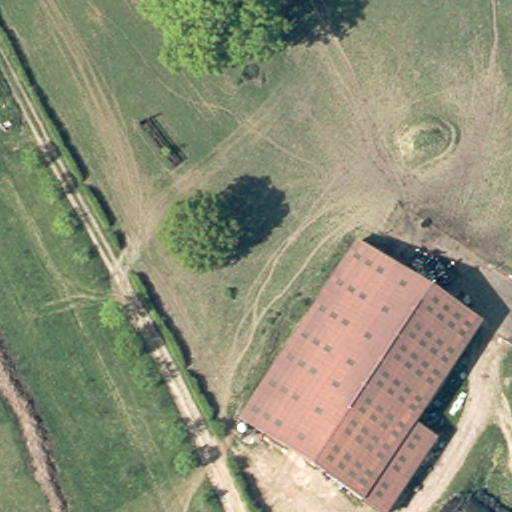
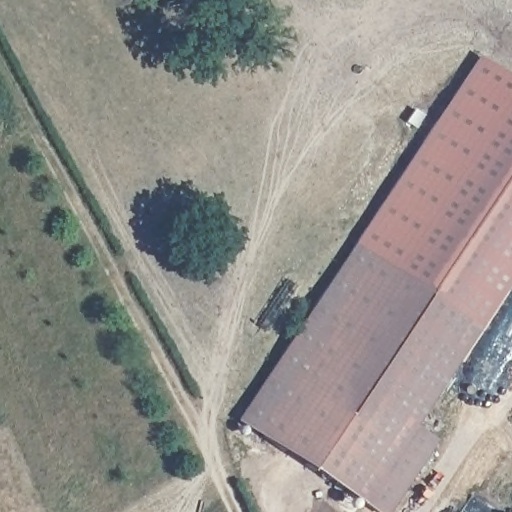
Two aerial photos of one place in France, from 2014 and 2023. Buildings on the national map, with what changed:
new [(480,55),(512,76),(512,278),(482,324),(359,241),(480,55)]
unchanged [(416,423),(438,438),(388,512),(386,512),(241,416),(359,241),(482,324),(416,423)]

